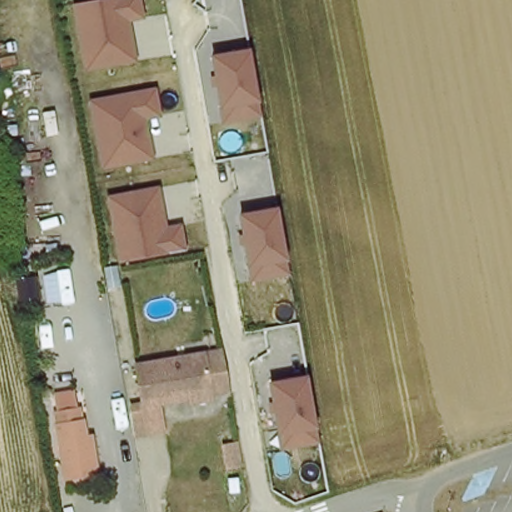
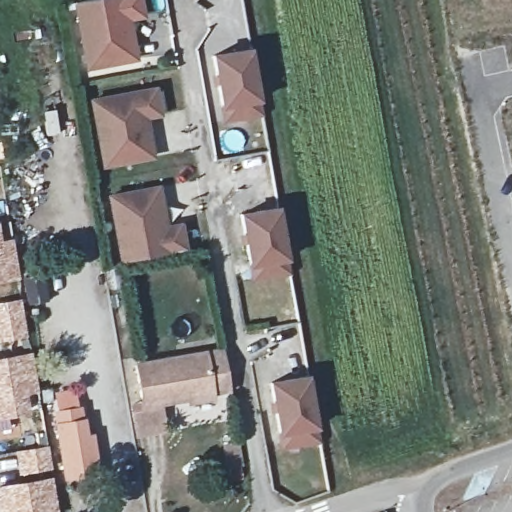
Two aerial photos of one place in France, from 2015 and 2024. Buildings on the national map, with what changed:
unchanged [(130,20),(137,61),(84,71),(72,4),(99,0),(140,0),(145,18),(130,20)]
unchanged [(260,100),(263,119),(224,124),(222,110),(213,54),(251,49),(260,100)]
unchanged [(163,117),(149,119),(155,159),(103,169),(91,98),(158,88),(163,117)]
unchanged [(187,251),(118,263),(107,193),(161,186),(168,226),(183,224),(187,251)]
unchanged [(288,259),(292,278),(253,284),(251,269),(241,213),(279,207),(288,259)]
new [(12,236),(21,279),(0,283),(0,226),(2,238),(12,236)]
new [(27,305),(21,279),(34,275),(40,303),(27,305)]
new [(21,297),(29,339),(0,344),(0,300),(21,297)]
unchanged [(207,349),(224,347),(231,387),(213,390),(214,392),(201,394),(161,401),(162,405),(146,408),(144,397),(138,361),(194,352),(207,349)]
new [(31,349),(41,408),(9,416),(11,427),(0,430),(0,355),(31,349)]
unchanged [(319,426),(321,444),(283,451),(281,437),(272,382),(309,377),(319,426)]
unchanged [(144,397),(146,408),(162,405),(167,431),(133,437),(126,400),(144,397)]
unchanged [(81,472),(63,475),(53,412),(79,408),(83,436),(89,435),(92,458),(94,470),(81,472)]
new [(47,444),(52,469),(18,476),(14,450),(47,444)]
new [(52,474),(58,512),(0,512),(0,484),(52,474)]
unchanged [(167,492),(153,494),(149,479),(164,476),(167,492)]

